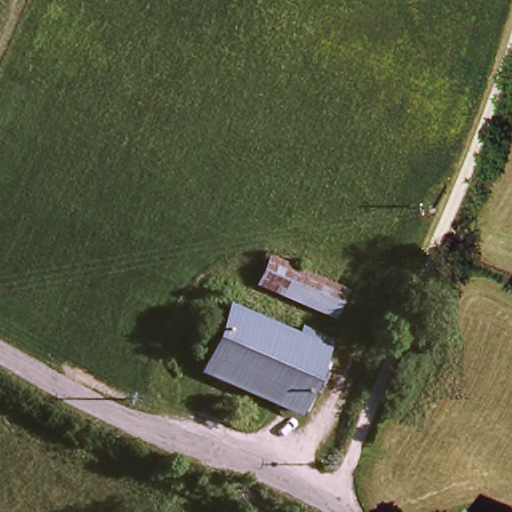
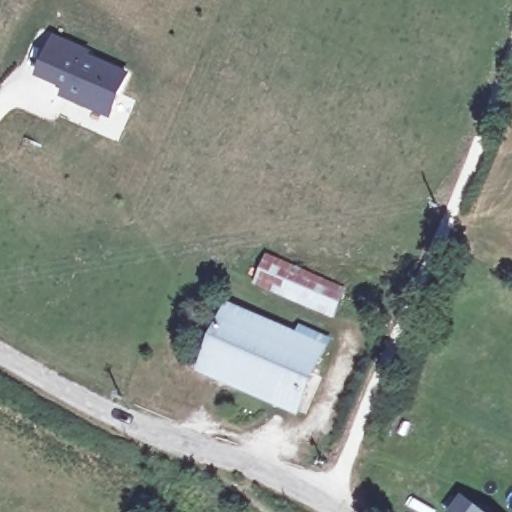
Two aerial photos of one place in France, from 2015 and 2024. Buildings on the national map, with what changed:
new [(57,40),(76,48),(90,54),(88,58),(129,76),(111,116),(69,98),(72,90),(41,76),(54,47),(57,40)]
unchanged [(337,314),(259,279),(269,257),(347,292),(337,314)]
unchanged [(300,340),(304,331),(330,342),(299,414),(205,373),(232,311),(300,340)]

